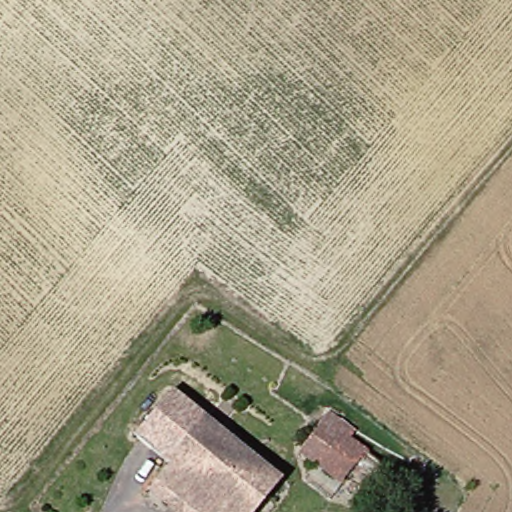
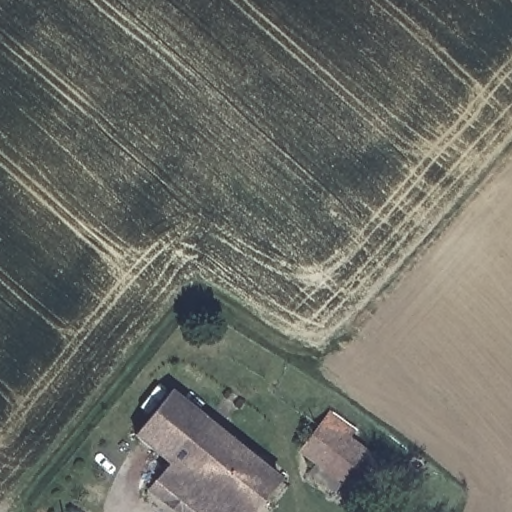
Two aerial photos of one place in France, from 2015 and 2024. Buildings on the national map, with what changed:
unchanged [(174,463),(142,435),(178,392),(212,420),(174,463)]
unchanged [(356,487),(340,475),(295,442),(321,407),(347,426),(343,431),(362,445),(379,457),(356,487)]
unchanged [(174,463),(212,420),(286,482),(260,512),(201,512),(161,478),(174,463)]
unchanged [(161,478),(201,512),(171,512),(148,492),(161,478)]

